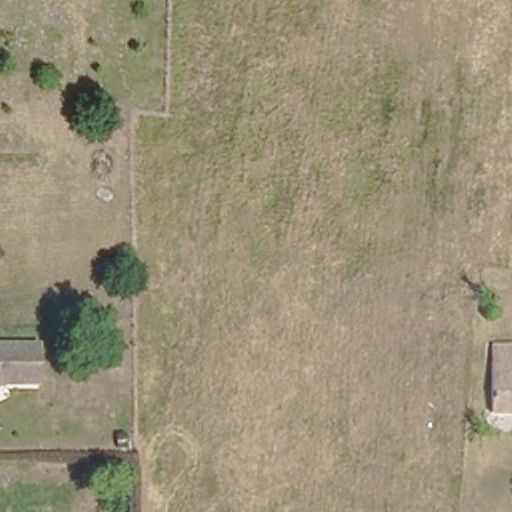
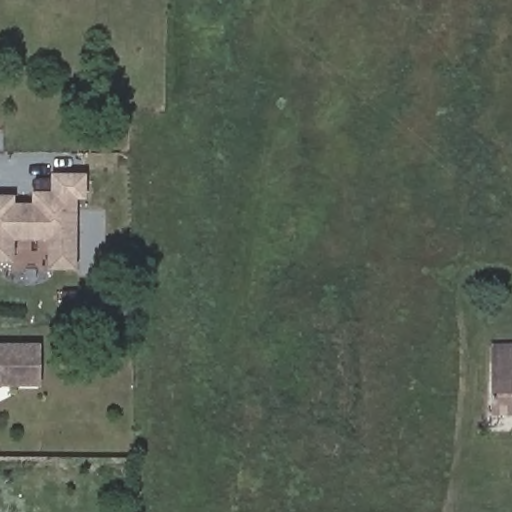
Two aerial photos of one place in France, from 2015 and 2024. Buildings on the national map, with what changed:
new [(56,195),(56,177),(86,177),(85,198),(76,197),(76,269),(53,269),(53,239),(35,239),(35,207),(34,194),(56,195)]
new [(11,199),(11,206),(35,207),(35,239),(11,239),(11,261),(0,261),(0,199),(11,199)]
unchanged [(512,364),(512,408),(489,407),(486,338),(511,339),(512,364)]
unchanged [(511,339),(512,339),(512,364),(511,339)]
unchanged [(42,340),(40,385),(0,385),(0,340),(42,340)]

